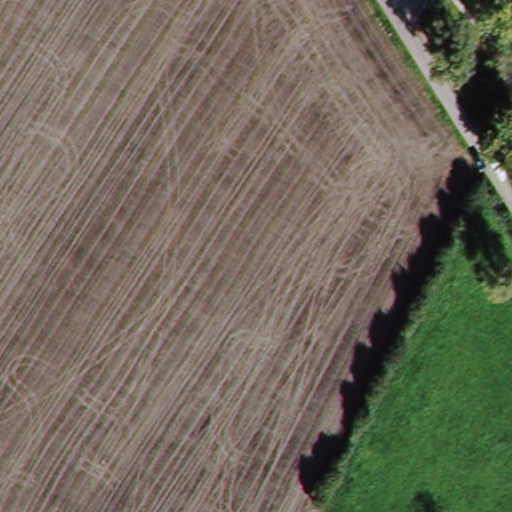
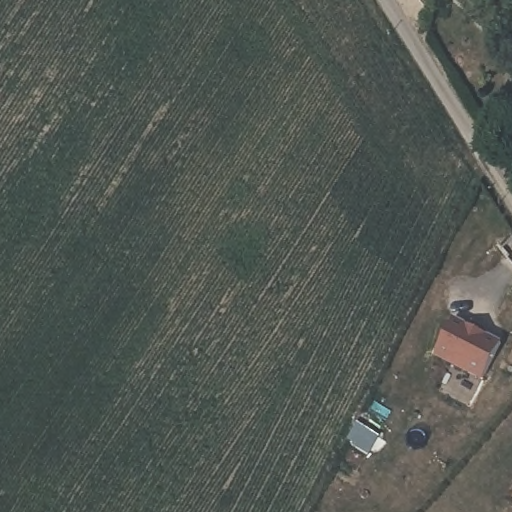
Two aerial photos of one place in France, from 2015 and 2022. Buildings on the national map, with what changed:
new [(503,342),(484,381),(434,355),(453,316),(503,342)]

